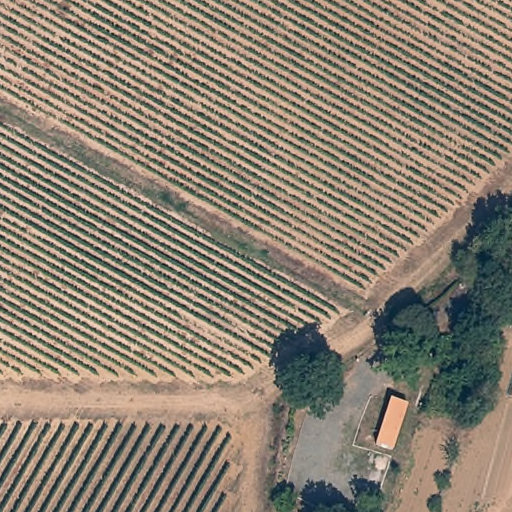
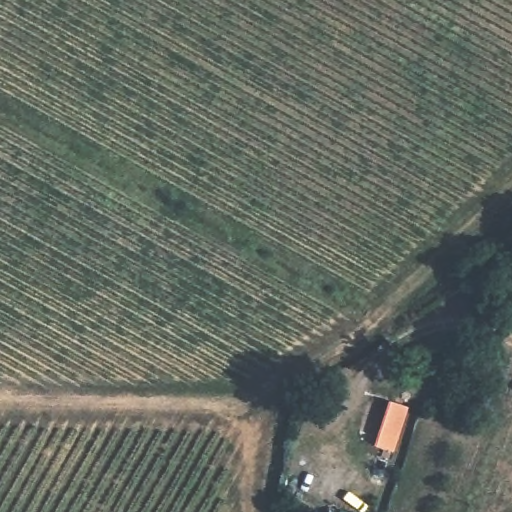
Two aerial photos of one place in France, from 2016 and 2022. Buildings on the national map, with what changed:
unchanged [(400,412),(386,456),(368,451),(383,406),(400,412)]

